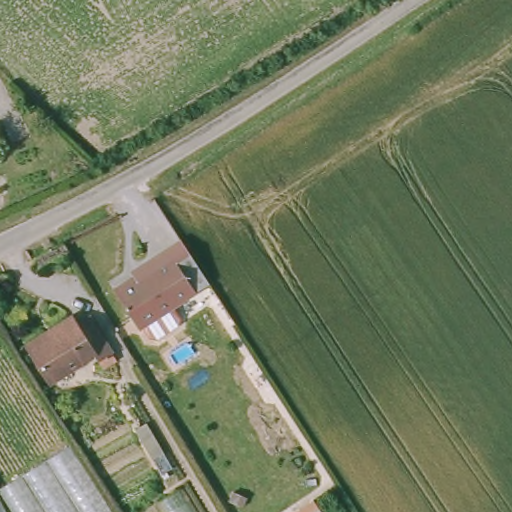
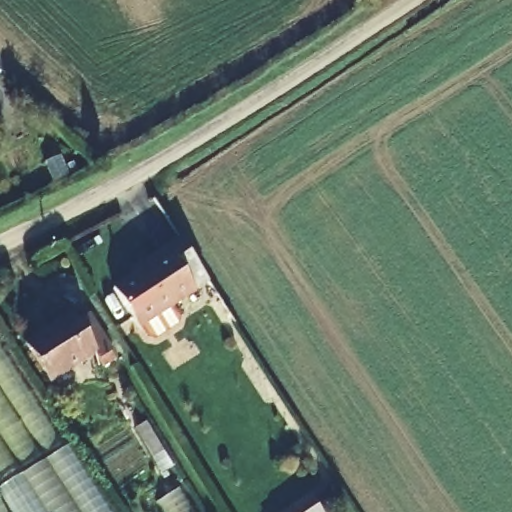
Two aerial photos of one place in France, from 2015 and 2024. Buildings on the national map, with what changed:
unchanged [(136,330),(109,290),(152,265),(151,258),(178,242),(206,284),(136,330)]
unchanged [(62,321),(66,328),(79,320),(103,357),(106,364),(93,372),(88,365),(84,360),(41,386),(18,350),(62,321)]
new [(0,346),(60,441),(0,475),(0,346)]
unchanged [(112,512),(12,512),(0,492),(0,488),(70,445),(112,512)]
unchanged [(0,512),(0,498),(7,512),(0,512)]
unchanged [(319,512),(297,512),(313,502),(319,512)]

